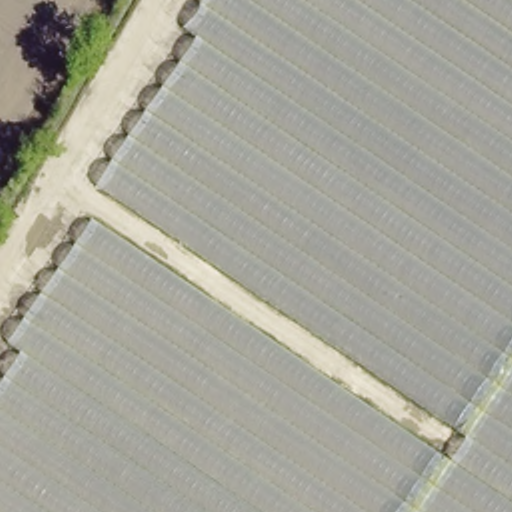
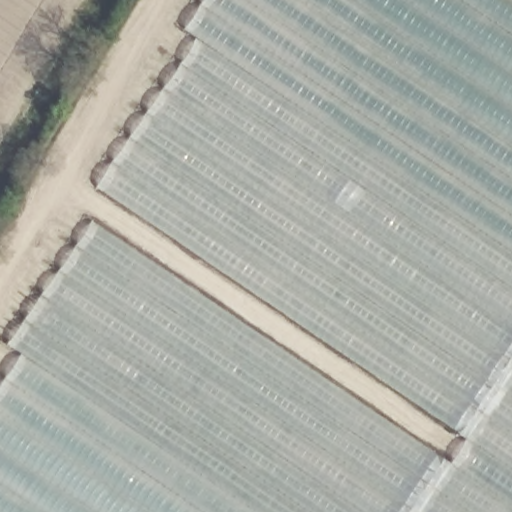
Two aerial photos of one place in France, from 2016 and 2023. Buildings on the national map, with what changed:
unchanged [(18,349),(6,338),(71,243),(424,482),(443,455),(453,462),(469,437),(90,185),(196,34),(180,23),(195,0),(512,0),(512,512),(0,512),(0,376),(18,349)]

